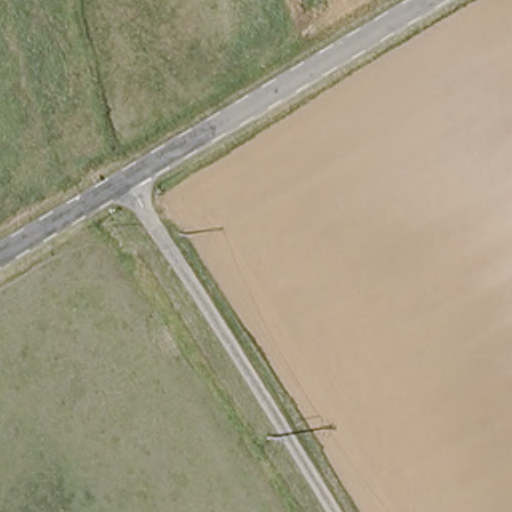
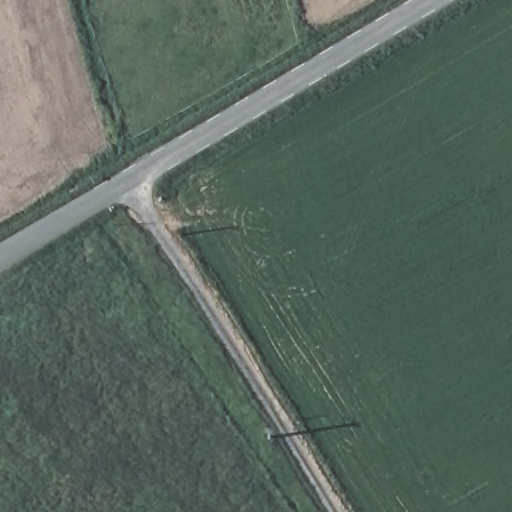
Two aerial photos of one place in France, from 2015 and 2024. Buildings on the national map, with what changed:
[]

